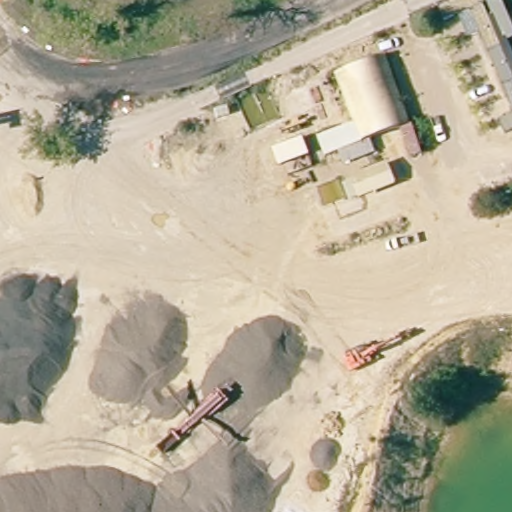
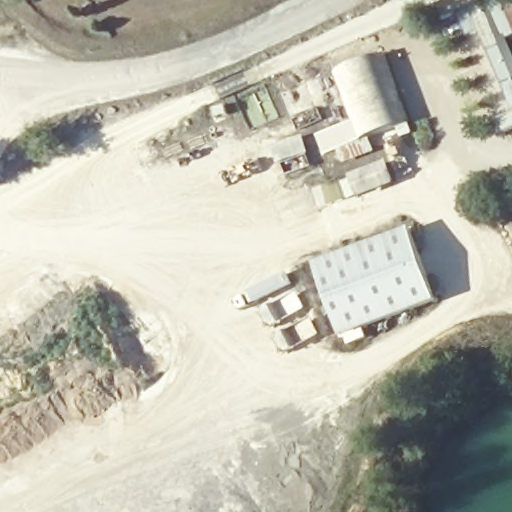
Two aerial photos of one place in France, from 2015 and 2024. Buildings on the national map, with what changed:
unchanged [(71,0),(86,0),(84,5),(71,0)]
unchanged [(489,0),(512,55),(512,88),(488,34),(475,38),(469,18),(456,24),(449,9),(475,0),(489,0)]
unchanged [(398,139),(363,149),(328,163),(318,135),(353,122),(333,71),(383,58),(406,122),(419,117),(432,148),(420,152),(427,174),(414,180),(398,139)]
unchanged [(509,122),(512,121),(512,129),(509,122)]
new [(411,227),(439,300),(344,336),(317,262),(411,227)]

